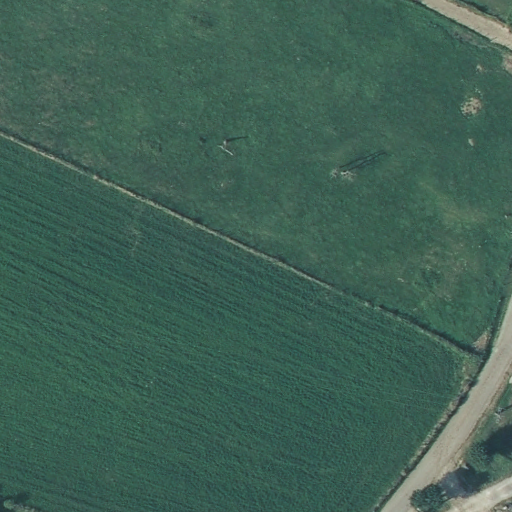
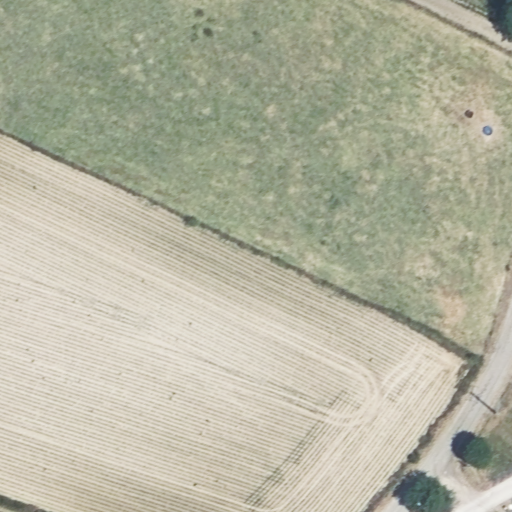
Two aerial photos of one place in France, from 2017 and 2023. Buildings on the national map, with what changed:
[]

